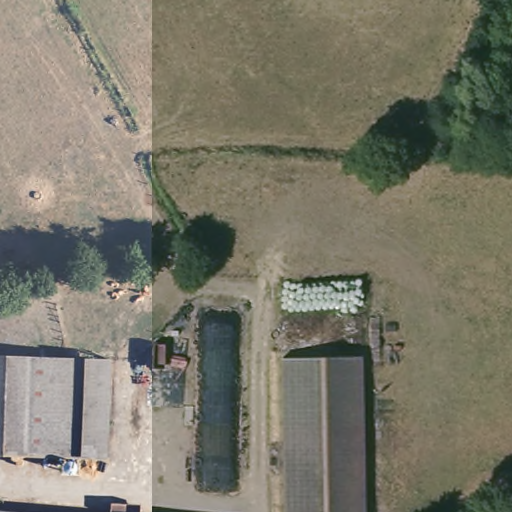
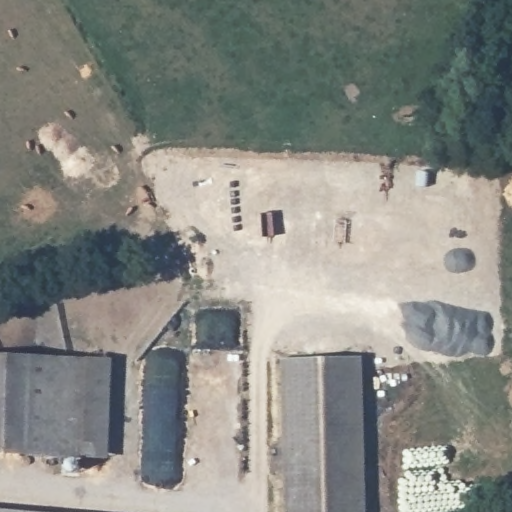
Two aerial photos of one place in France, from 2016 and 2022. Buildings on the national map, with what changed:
unchanged [(87,367),(84,464),(0,460),(0,363),(87,367)]
unchanged [(277,365),(352,363),(358,512),(282,512),(277,365)]

